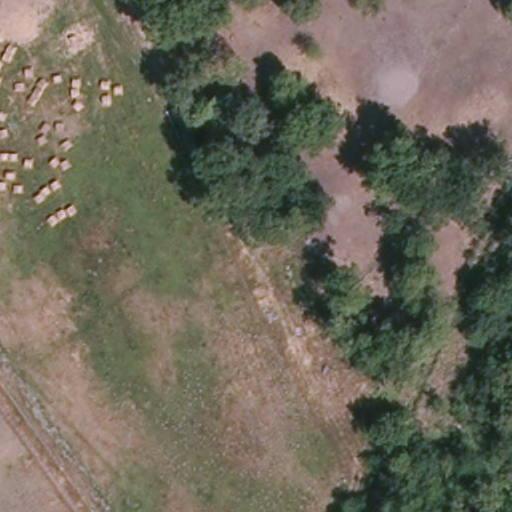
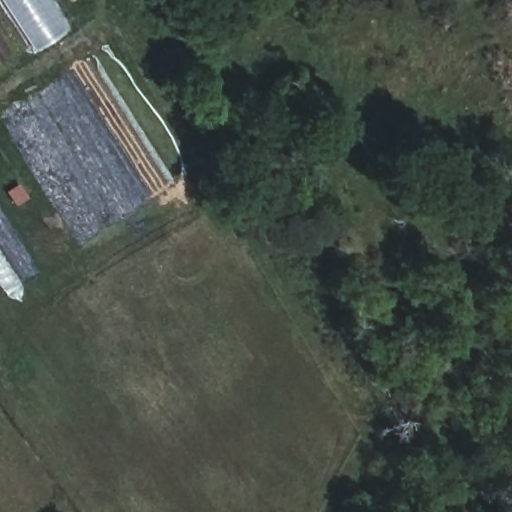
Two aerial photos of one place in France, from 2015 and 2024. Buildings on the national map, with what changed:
new [(4,0),(56,0),(75,28),(37,51),(4,0)]

